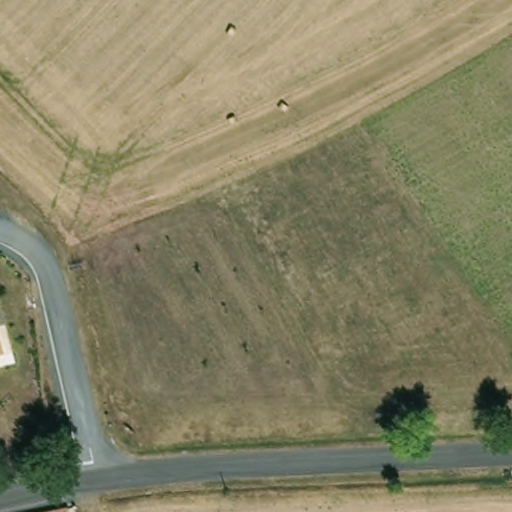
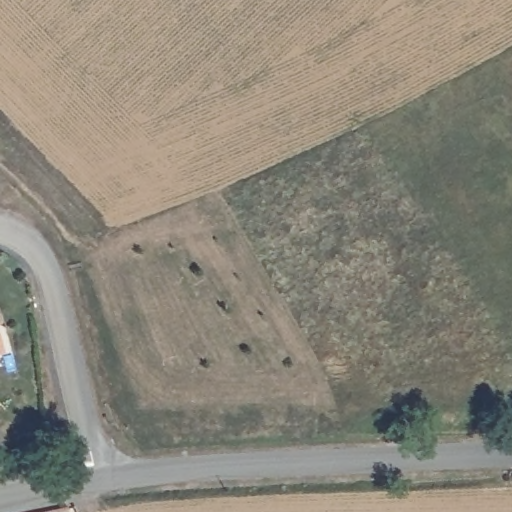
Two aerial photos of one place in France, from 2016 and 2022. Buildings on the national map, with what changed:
unchanged [(0,351),(0,328),(5,350),(0,351)]

